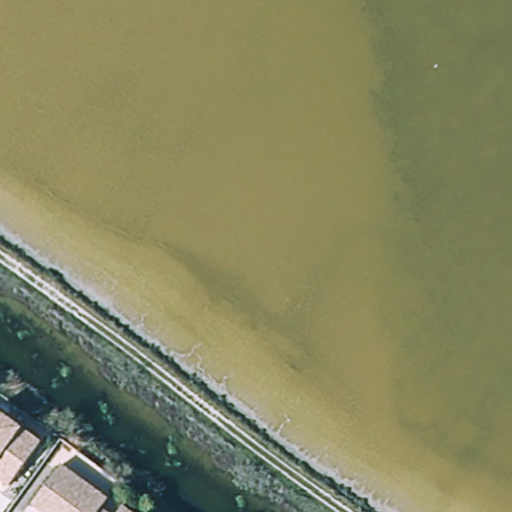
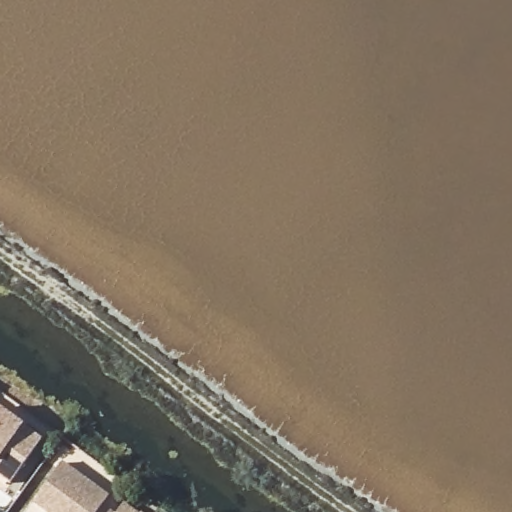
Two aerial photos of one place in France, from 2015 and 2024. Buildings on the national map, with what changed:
unchanged [(13,484),(0,474),(0,400),(49,438),(13,484)]
unchanged [(59,467),(101,498),(97,505),(107,512),(38,512),(30,507),(59,467)]
unchanged [(118,512),(122,507),(130,512),(118,512)]

